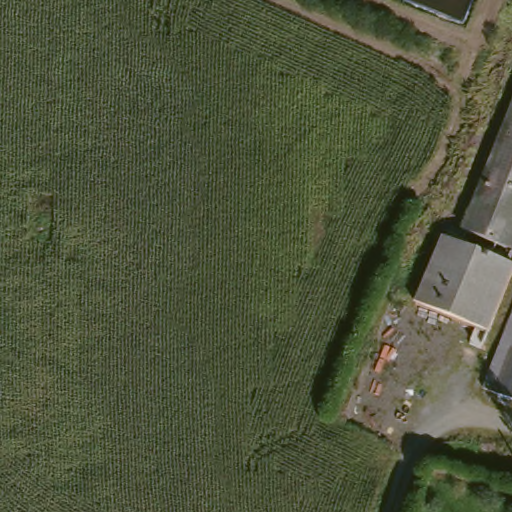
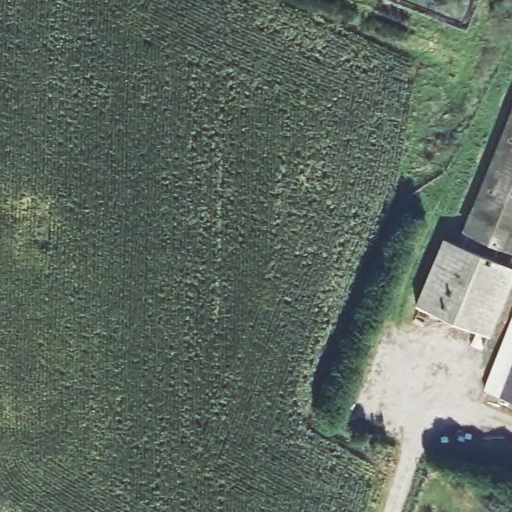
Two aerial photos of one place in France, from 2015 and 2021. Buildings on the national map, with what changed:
unchanged [(512,98),(512,231),(466,216),(512,98)]
unchanged [(512,231),(512,236),(505,255),(458,236),(466,216),(512,231)]
unchanged [(449,232),(458,236),(505,255),(512,258),(512,314),(504,333),(421,302),(449,232)]
unchanged [(479,394),(504,333),(512,314),(512,408),(479,394)]

